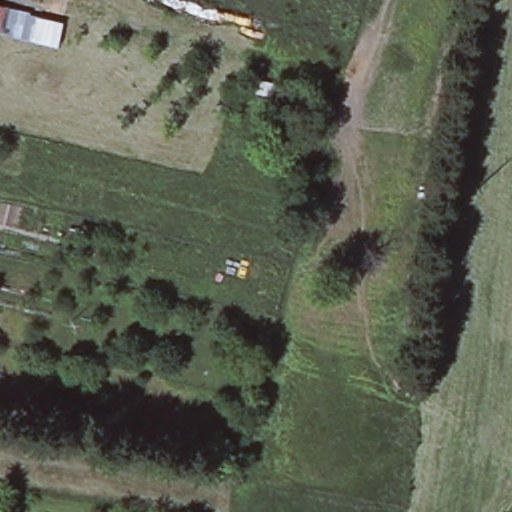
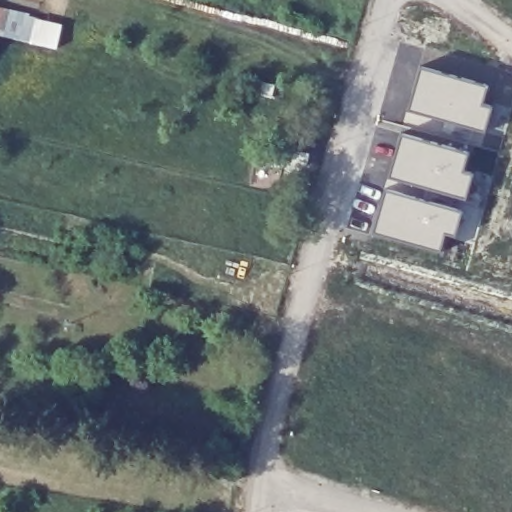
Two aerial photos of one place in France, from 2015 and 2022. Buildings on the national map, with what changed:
unchanged [(55,47),(0,35),(0,6),(62,20),(55,47)]
new [(418,65),(487,84),(482,103),(491,106),(484,132),(406,110),(418,65)]
new [(400,132),(468,152),(463,170),(472,173),(465,200),(386,177),(400,132)]
new [(385,188),(462,210),(455,237),(445,234),(439,252),(370,233),(385,188)]

